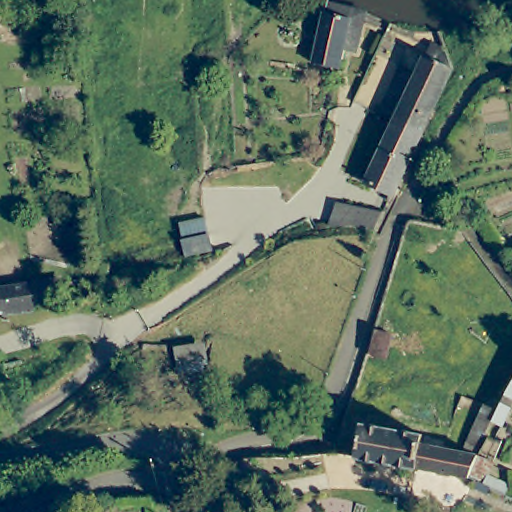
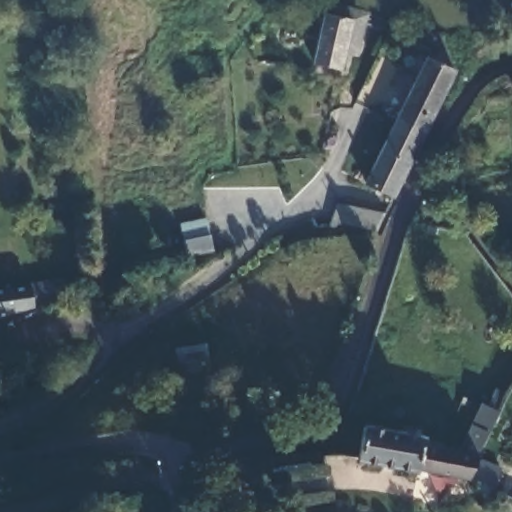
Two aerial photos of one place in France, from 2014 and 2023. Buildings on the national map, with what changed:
unchanged [(361,21),(356,44),(347,42),(341,68),(315,62),(324,12),(361,21)]
unchanged [(427,55),(430,56),(436,45),(448,52),(455,69),(422,134),(396,121),(427,55)]
unchanged [(393,195),(366,182),(396,121),(422,134),(393,195)]
unchanged [(385,212),(377,228),(350,224),(331,225),(338,203),(385,212)]
unchanged [(212,249),(210,249),(186,256),(184,241),(181,226),(207,222),(210,236),(212,249)]
unchanged [(37,307),(0,313),(0,283),(31,279),(34,278),(36,296),(37,307)]
unchanged [(395,336),(387,361),(371,356),(378,332),(395,336)]
unchanged [(500,409),(471,477),(358,457),(364,425),(423,435),(422,445),(460,452),(460,456),(465,457),(466,448),(473,432),(487,403),(500,409)]
unchanged [(277,512),(271,512),(272,510),(277,512)]

